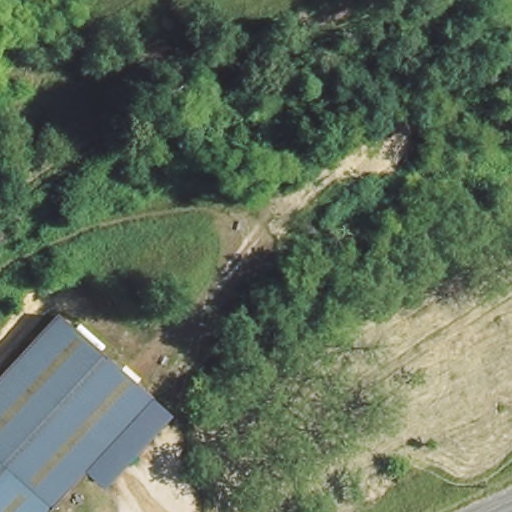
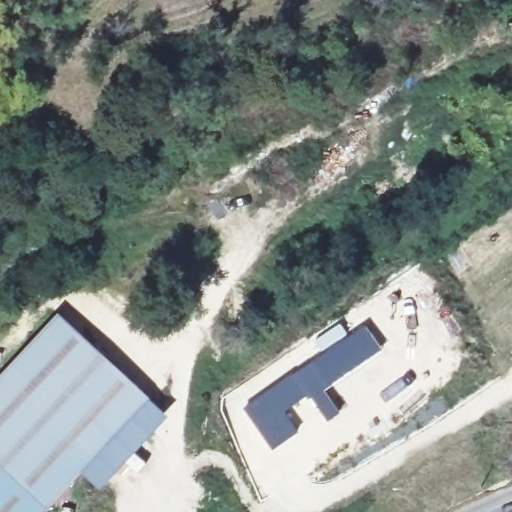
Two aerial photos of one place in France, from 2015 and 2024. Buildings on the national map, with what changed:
unchanged [(165,49),(134,72),(117,50),(148,27),(165,49)]
unchanged [(150,393),(98,449),(110,462),(95,477),(83,467),(42,512),(0,512),(0,380),(62,314),(150,393)]
new [(321,352),(312,339),(338,321),(347,334),(364,323),(382,349),(325,390),(340,412),(326,422),(307,397),(291,407),(287,403),(290,401),(277,382),(321,352)]

